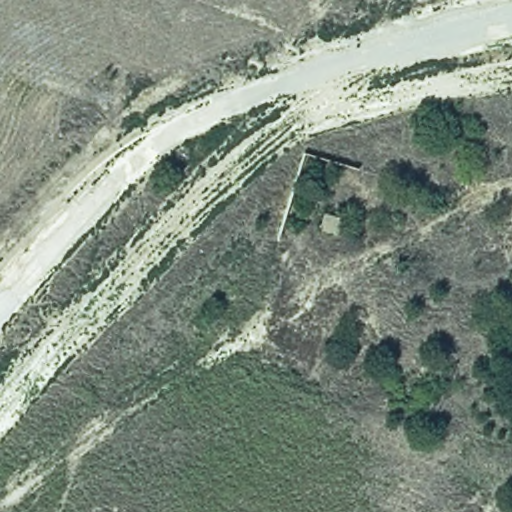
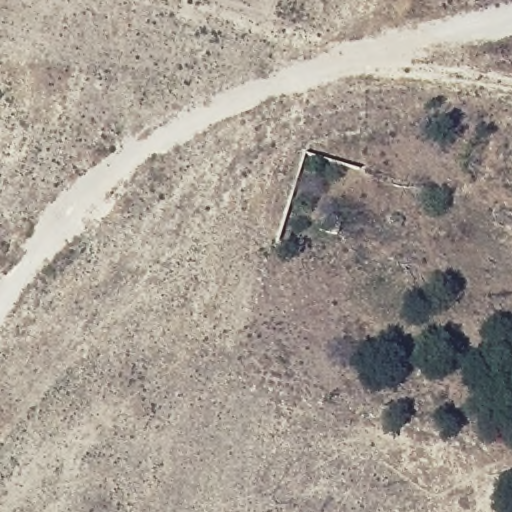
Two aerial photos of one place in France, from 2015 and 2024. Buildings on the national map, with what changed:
unchanged [(342,217),(337,237),(319,231),(325,212),(342,217)]

